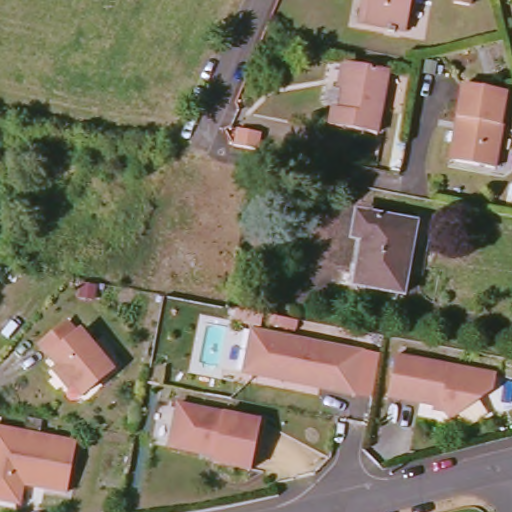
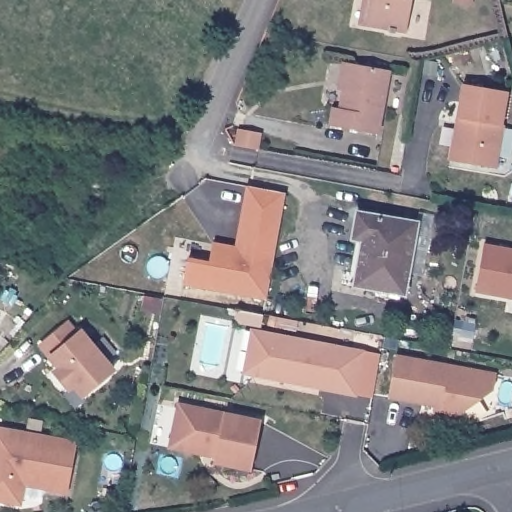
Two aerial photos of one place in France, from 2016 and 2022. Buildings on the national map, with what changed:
unchanged [(402,1),(409,2),(402,36),(357,27),(362,0),(403,0),(402,1)]
unchanged [(460,20),(445,16),(448,0),(463,0),(460,20)]
unchanged [(386,73),(374,134),(327,126),(331,108),(338,109),(346,66),(386,73)]
unchanged [(459,118),(465,85),(507,93),(500,127),(505,128),(498,166),(459,159),(452,158),(459,118)]
new [(184,284),(188,256),(210,261),(214,241),(235,245),(247,185),(285,193),(266,298),(184,284)]
unchanged [(358,241),(354,237),(351,234),(350,230),(350,227),(351,223),(352,220),(356,218),(360,216),(365,216),(415,225),(402,291),(351,282),(358,241)]
new [(476,291),(484,243),(512,248),(512,298),(476,291)]
unchanged [(72,338),(77,334),(110,373),(100,382),(80,398),(71,387),(65,391),(51,376),(54,373),(57,370),(37,348),(63,326),(72,338)]
unchanged [(256,379),(244,376),(252,334),(264,336),(362,355),(354,398),(256,379)]
unchanged [(440,410),(387,400),(394,359),(482,374),(495,376),(492,391),(484,397),(449,421),(440,410)]
unchanged [(171,445),(179,407),(261,424),(251,473),(214,465),(215,460),(170,451),(171,445)]
unchanged [(64,496),(20,488),(17,507),(0,504),(0,432),(73,445),(64,496)]

